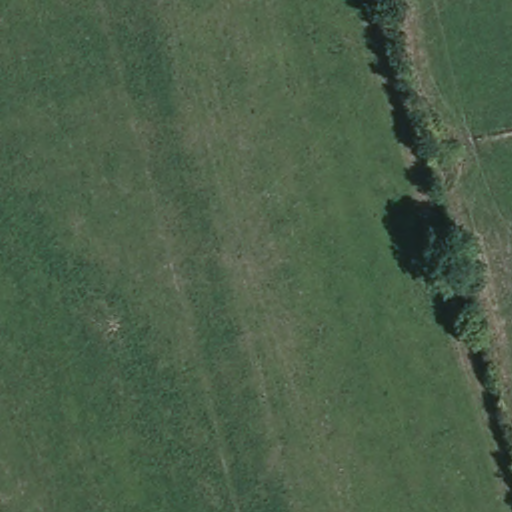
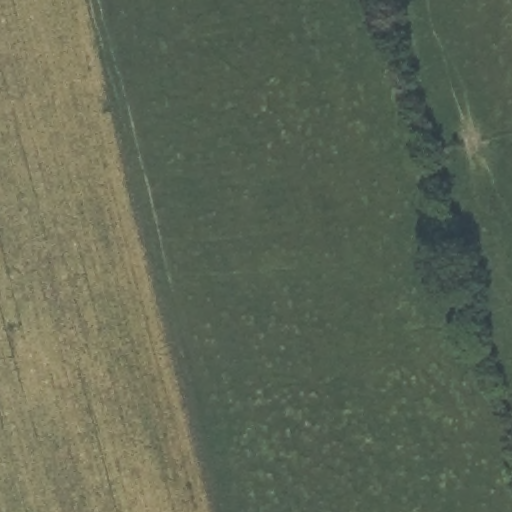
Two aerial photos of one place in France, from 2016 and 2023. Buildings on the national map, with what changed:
[]

